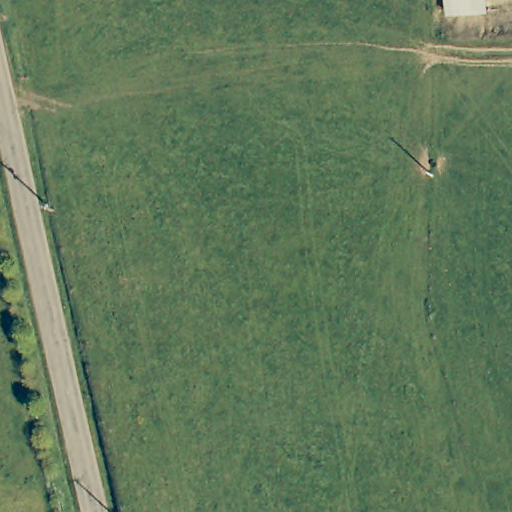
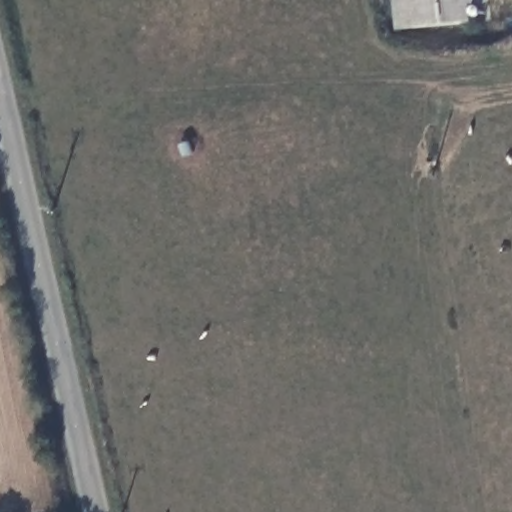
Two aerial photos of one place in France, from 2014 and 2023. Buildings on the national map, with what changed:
new [(487,4),(468,6),(470,22),(394,29),(392,0),(487,0),(487,4)]

